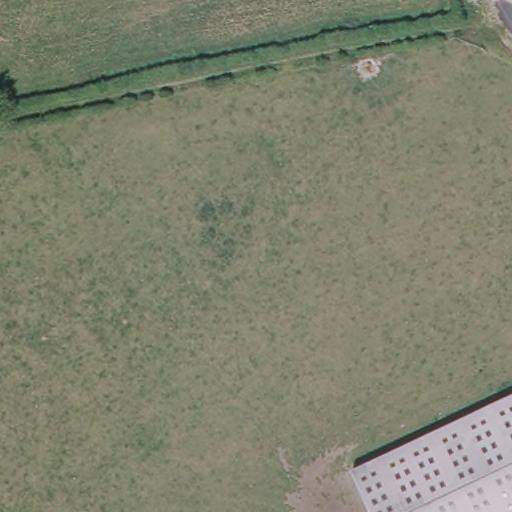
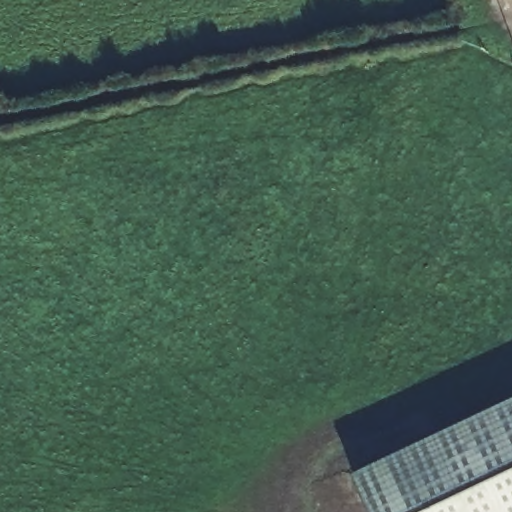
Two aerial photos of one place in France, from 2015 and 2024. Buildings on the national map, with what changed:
unchanged [(360,482),(512,410),(512,512),(375,512),(360,482)]

